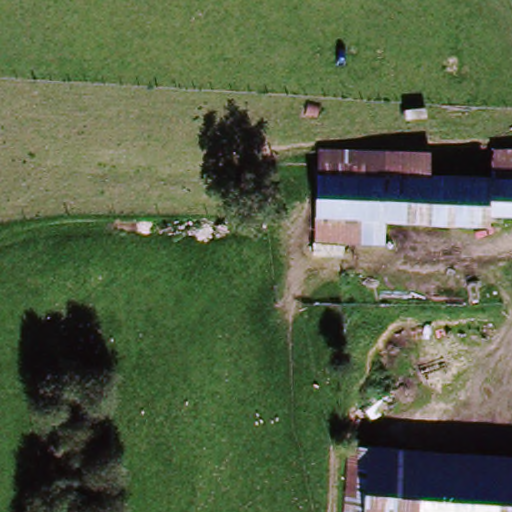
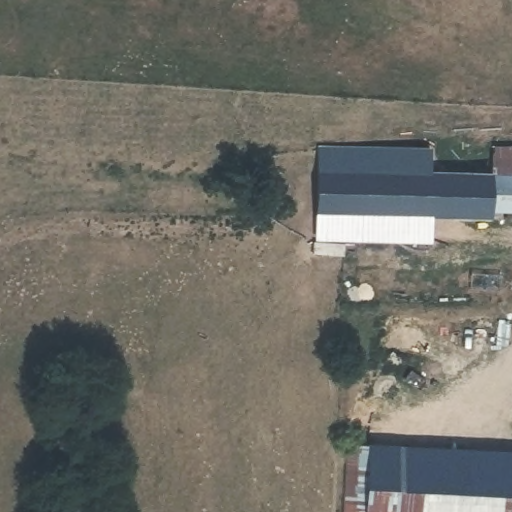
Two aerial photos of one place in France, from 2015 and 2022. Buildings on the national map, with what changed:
unchanged [(321,127),(437,132),(435,175),(405,174),(320,169),(316,169),(321,127)]
unchanged [(490,178),(493,135),(512,136),(512,179),(490,178)]
unchanged [(316,169),(320,169),(405,174),(435,175),(490,178),(490,213),(490,219),(315,210),(315,178),(316,169)]
unchanged [(490,178),(512,179),(512,213),(490,213),(490,178)]
unchanged [(512,440),(512,493),(371,484),(369,483),(373,430),(512,440)]
unchanged [(371,484),(512,493),(512,512),(369,512),(371,484)]

